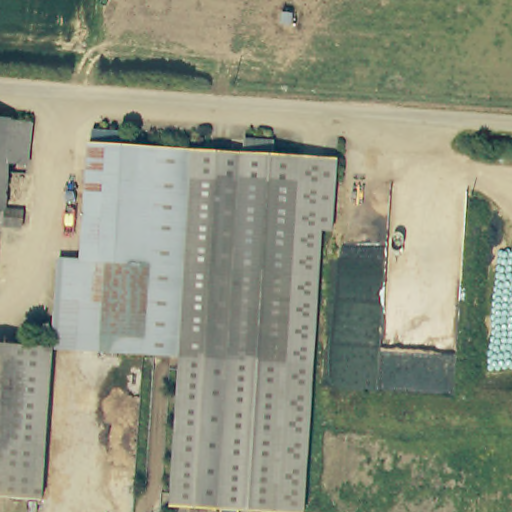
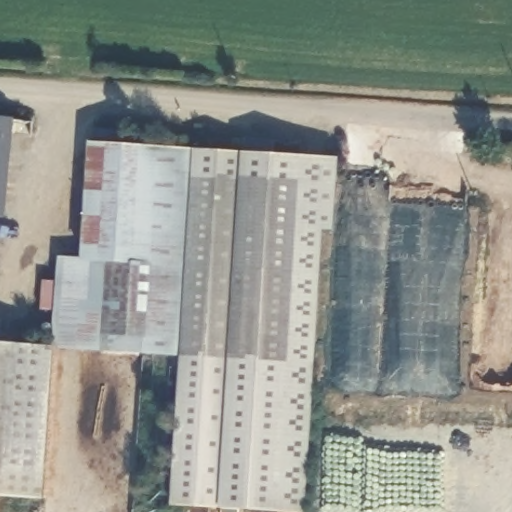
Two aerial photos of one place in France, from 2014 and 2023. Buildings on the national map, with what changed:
unchanged [(30,119),(26,166),(7,164),(3,210),(21,211),(19,227),(0,226),(0,116),(30,119)]
unchanged [(92,125),(121,126),(120,142),(158,144),(229,148),(242,149),(243,136),(273,137),(272,151),(335,155),(331,227),(320,227),(310,391),(303,511),(239,507),(239,512),(220,512),(220,506),(170,502),(175,419),(180,350),(58,342),(60,323),(64,252),(84,253),(89,164),(92,125)]
unchanged [(52,342),(47,406),(42,492),(0,489),(0,338),(40,341),(52,342)]

